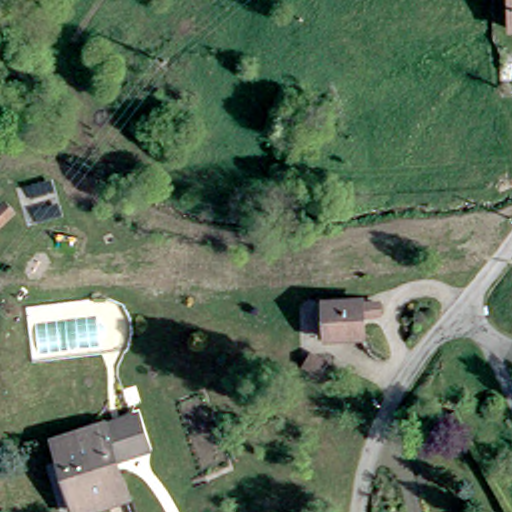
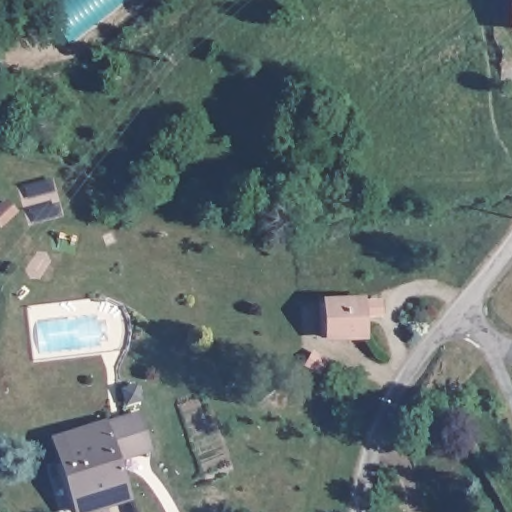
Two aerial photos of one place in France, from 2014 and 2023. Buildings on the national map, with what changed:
new [(38,6),(47,0),(131,0),(72,47),(38,6)]
unchanged [(330,350),(327,318),(362,315),(362,320),(380,318),(380,330),(362,331),(364,347),(330,350)]
unchanged [(124,462),(136,496),(92,512),(84,512),(60,440),(128,420),(142,416),(155,452),(124,462)]

